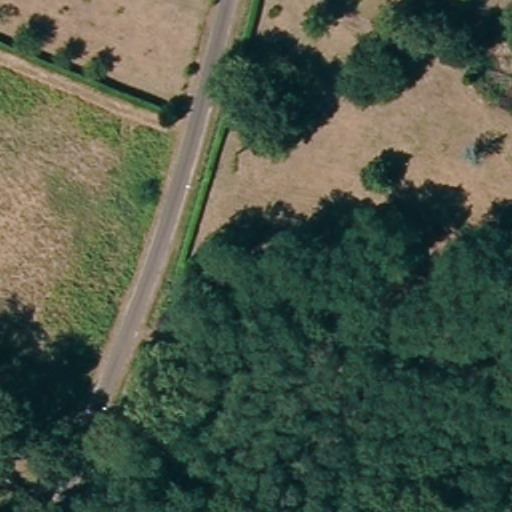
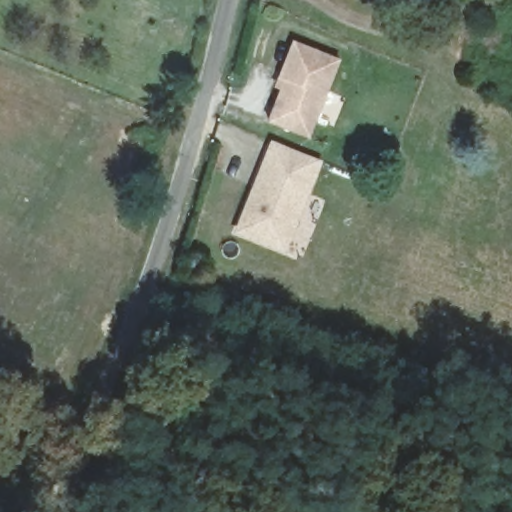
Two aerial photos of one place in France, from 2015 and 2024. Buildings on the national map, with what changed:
new [(341,60),(310,140),(267,123),(280,90),(275,89),(293,40),(341,60)]
new [(323,161),(286,254),(233,232),(271,140),(323,161)]

